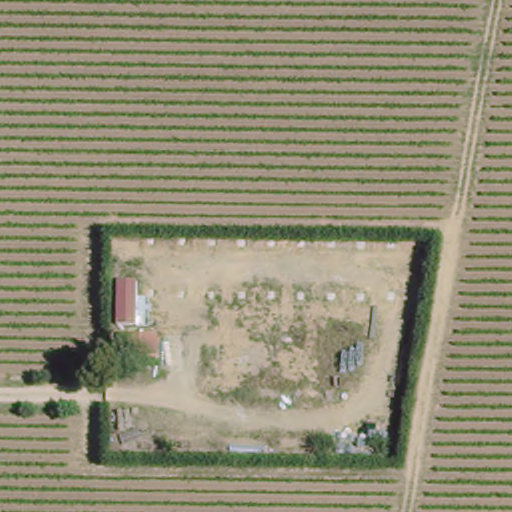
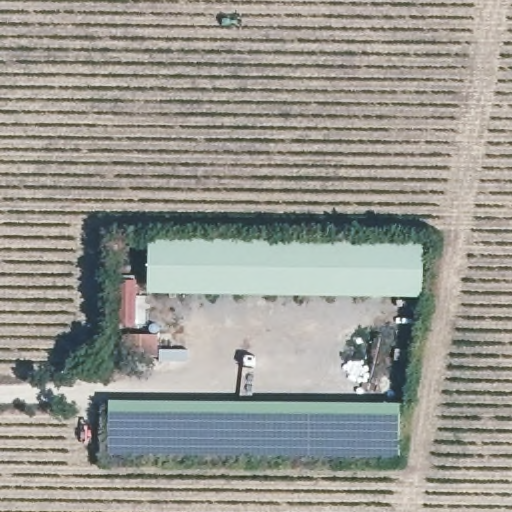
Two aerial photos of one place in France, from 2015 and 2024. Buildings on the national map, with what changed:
new [(423,297),(148,292),(149,237),(423,242),(423,297)]
new [(136,324),(115,324),(115,280),(137,281),(136,324)]
unchanged [(160,335),(160,359),(125,359),(123,335),(160,335)]
new [(398,457),(107,454),(110,399),(400,404),(398,457)]

